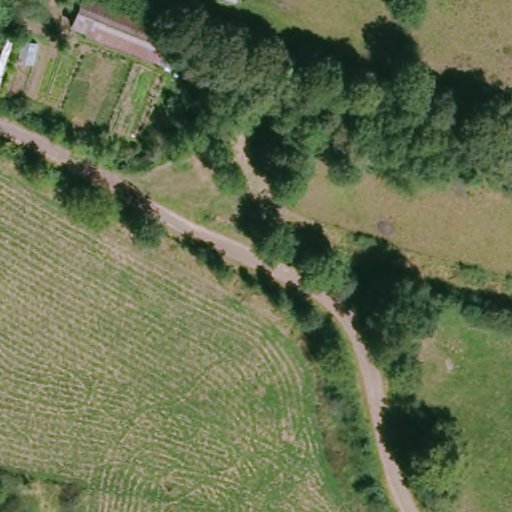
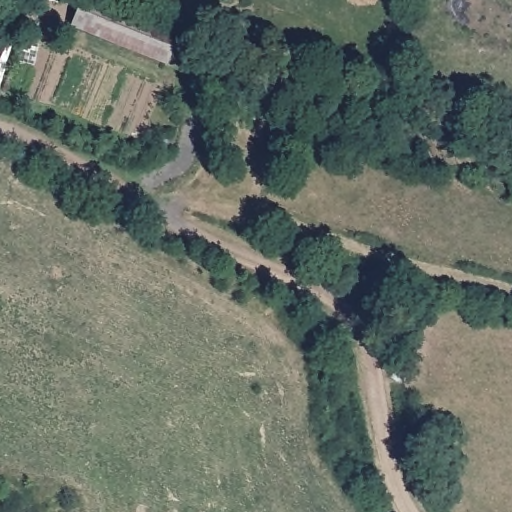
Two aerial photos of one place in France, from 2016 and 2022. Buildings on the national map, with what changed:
unchanged [(68,6),(43,0),(68,0),(68,6)]
unchanged [(74,30),(85,0),(88,0),(178,33),(167,62),(74,30)]

